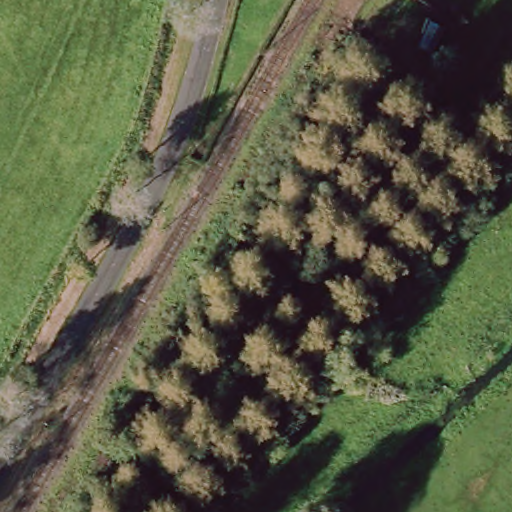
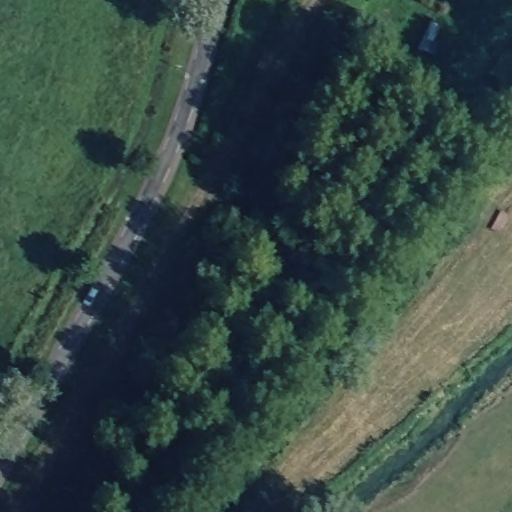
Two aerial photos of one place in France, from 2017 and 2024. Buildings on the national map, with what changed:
unchanged [(447,0),(466,0),(456,13),(444,3),(447,0)]

